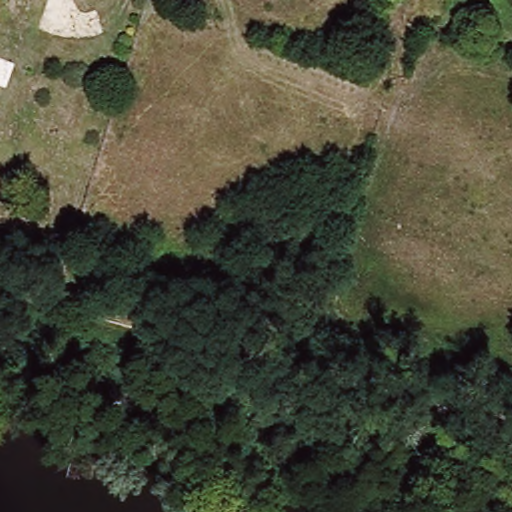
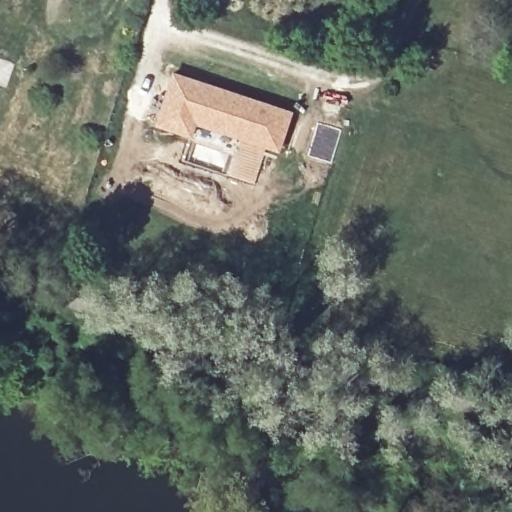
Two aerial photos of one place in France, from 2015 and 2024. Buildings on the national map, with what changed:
new [(172,72),(292,112),(278,152),(195,125),(191,137),(155,127),(172,72)]

